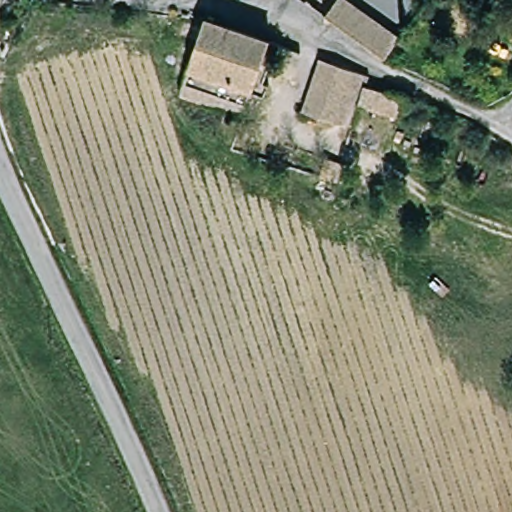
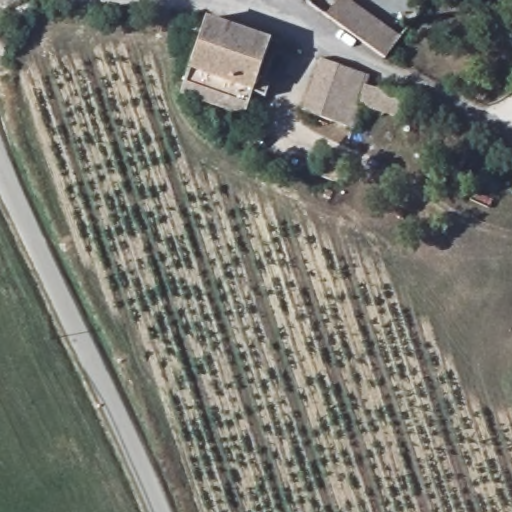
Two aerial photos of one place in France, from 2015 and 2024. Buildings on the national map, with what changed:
unchanged [(332,0),(346,0),(399,38),(382,60),(320,15),(332,0)]
unchanged [(271,42),(245,116),(185,94),(210,22),(271,42)]
unchanged [(330,127),(302,116),(318,64),(347,74),(330,127)]
unchanged [(368,81),(365,91),(406,105),(400,125),(360,110),(351,134),(330,127),(347,74),(368,81)]
unchanged [(336,167),(330,186),(315,181),(321,162),(336,167)]

